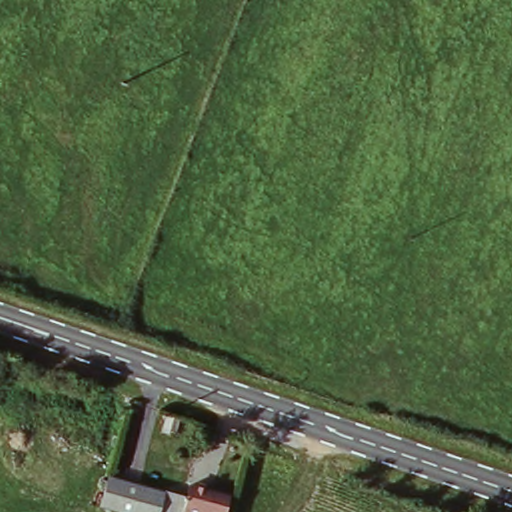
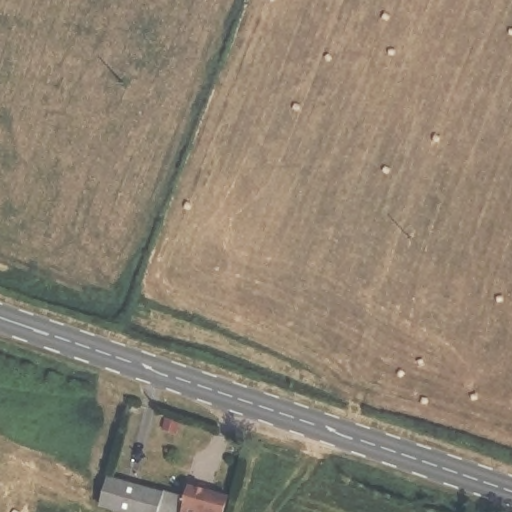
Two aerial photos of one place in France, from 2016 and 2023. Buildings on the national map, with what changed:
unchanged [(178,501),(176,509),(183,512),(126,512),(105,504),(116,474),(179,497),(178,501)]
unchanged [(178,501),(179,497),(188,501),(191,490),(227,503),(224,512),(183,512),(176,509),(178,501)]

